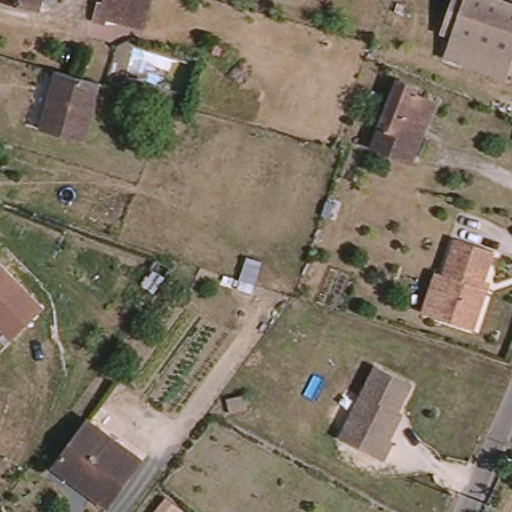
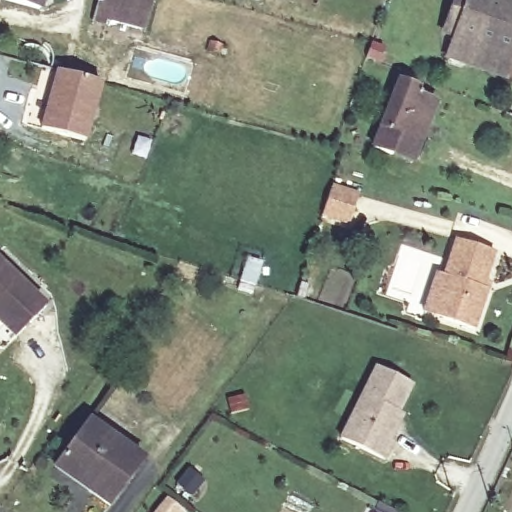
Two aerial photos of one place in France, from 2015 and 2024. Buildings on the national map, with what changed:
unchanged [(34,15),(0,0),(40,0),(34,15)]
unchanged [(95,2),(103,2),(104,0),(153,0),(144,34),(109,25),(107,30),(90,21),(95,2)]
unchanged [(457,36),(446,32),(455,8),(458,0),(505,0),(512,3),(512,53),(511,57),(457,36)]
unchanged [(504,76),(449,56),(457,36),(511,57),(504,76)]
unchanged [(83,143),(43,127),(58,66),(100,82),(83,143)]
unchanged [(371,147),(380,130),(402,83),(409,85),(418,97),(439,107),(422,150),(414,167),(371,147)]
unchanged [(6,132),(1,147),(0,147),(0,128),(6,132)]
new [(330,190),(356,199),(346,227),(323,219),(330,190)]
unchanged [(442,276),(454,245),(456,240),(494,253),(492,257),(475,296),(486,301),(473,332),(442,320),(427,315),(442,276)]
unchanged [(0,327),(0,264),(45,315),(19,341),(16,345),(0,327)]
unchanged [(392,440),(395,442),(386,460),(361,447),(343,438),(379,366),(401,377),(414,384),(399,412),(404,415),(399,426),(392,440)]
unchanged [(61,460),(88,424),(141,463),(109,510),(90,497),(53,472),(61,460)]
unchanged [(167,512),(174,502),(186,512),(167,512)]

